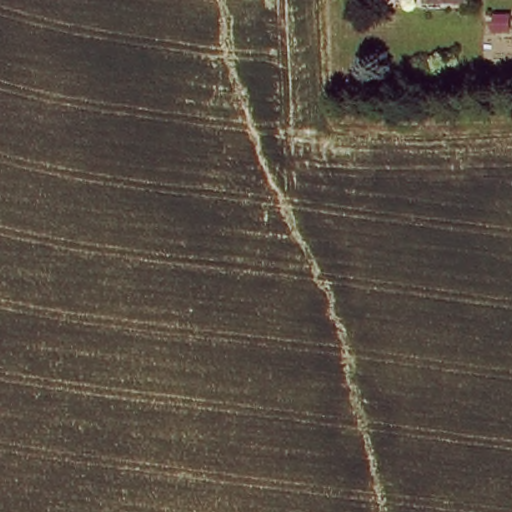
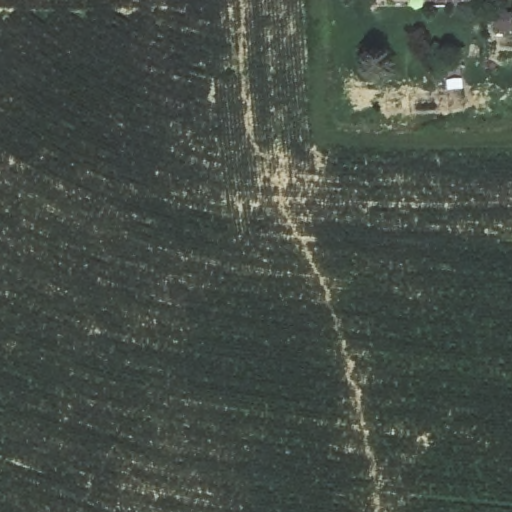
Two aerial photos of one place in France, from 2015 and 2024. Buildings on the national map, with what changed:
unchanged [(424,2),(424,0),(467,0),(468,1),(424,2)]

